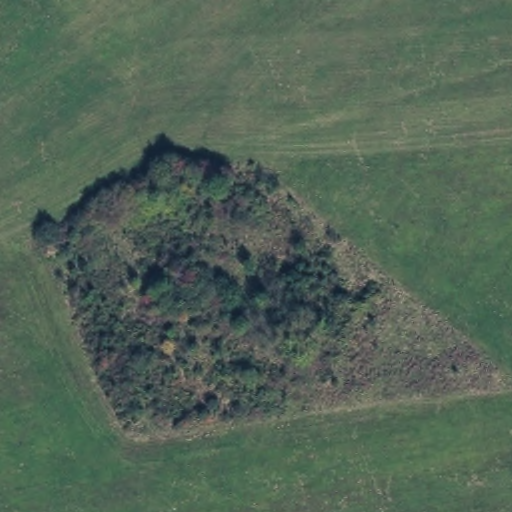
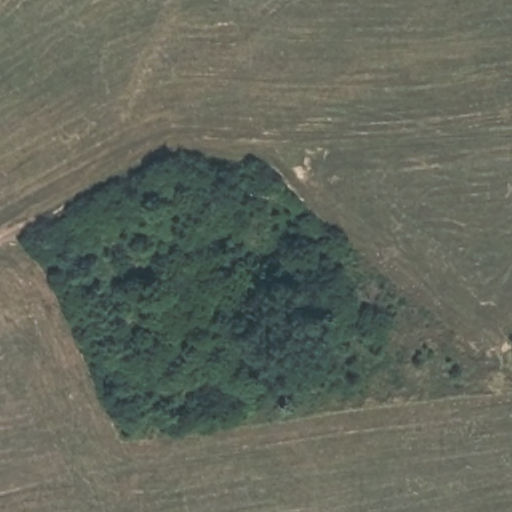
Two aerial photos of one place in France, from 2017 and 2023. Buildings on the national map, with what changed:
unchanged [(194,276),(193,300),(169,299),(168,276),(194,276)]

